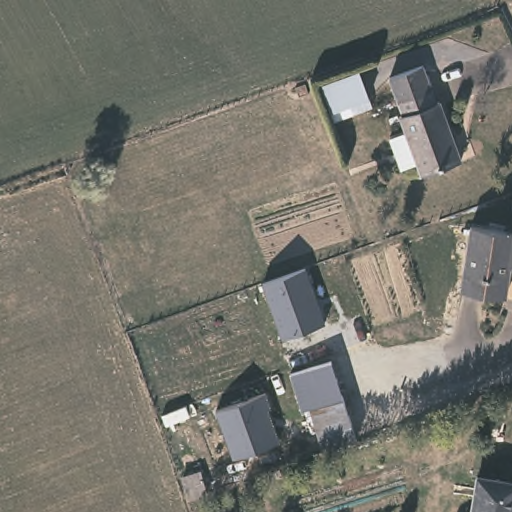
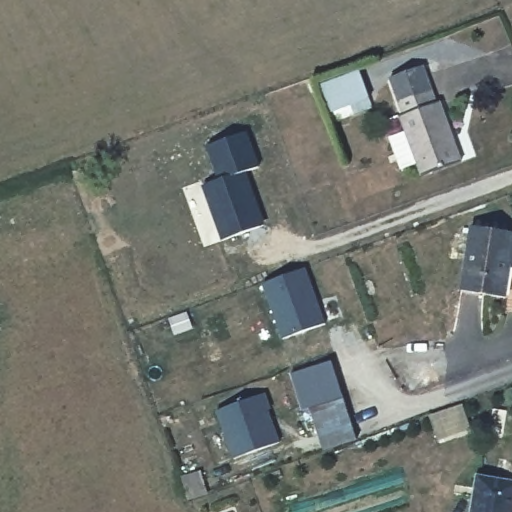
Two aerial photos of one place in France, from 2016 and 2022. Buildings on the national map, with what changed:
unchanged [(373,98),(332,114),(320,81),(361,67),(373,98)]
unchanged [(438,103),(440,102),(461,159),(419,173),(400,120),(403,116),(389,80),(425,67),(438,103)]
new [(260,166),(247,171),(265,224),(221,238),(202,185),(220,179),(206,145),(248,132),(260,166)]
unchanged [(512,242),(512,278),(506,277),(497,308),(452,297),(468,230),(512,242)]
unchanged [(263,282),(305,269),(324,323),(284,337),(263,282)]
demolished [(190,305),(141,318),(133,292),(182,277),(190,305)]
unchanged [(333,358),(358,437),(325,448),(312,406),(304,408),(293,372),(333,358)]
unchanged [(217,411),(266,393),(273,409),(269,411),(279,442),(233,457),(217,411)]
unchanged [(205,489),(183,497),(175,476),(197,467),(205,489)]
unchanged [(512,488),(512,509),(512,512),(471,512),(475,482),(512,488)]

